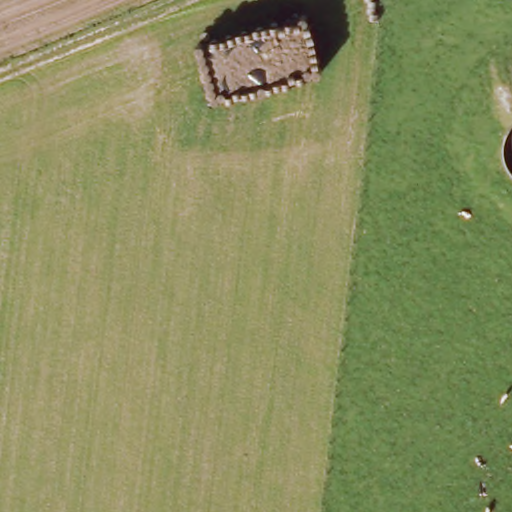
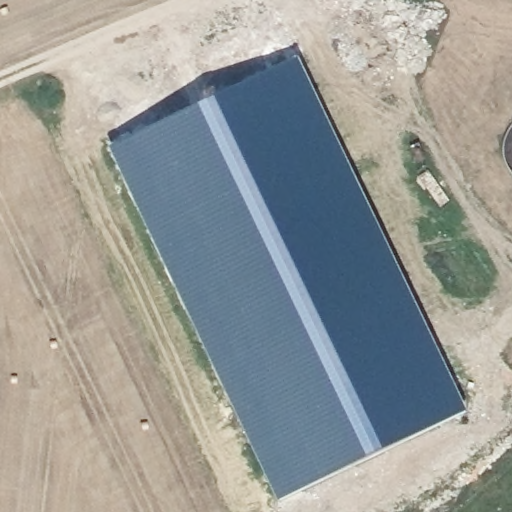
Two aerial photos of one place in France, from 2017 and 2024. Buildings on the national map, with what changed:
new [(463,417),(276,506),(108,150),(296,61),(463,417)]

